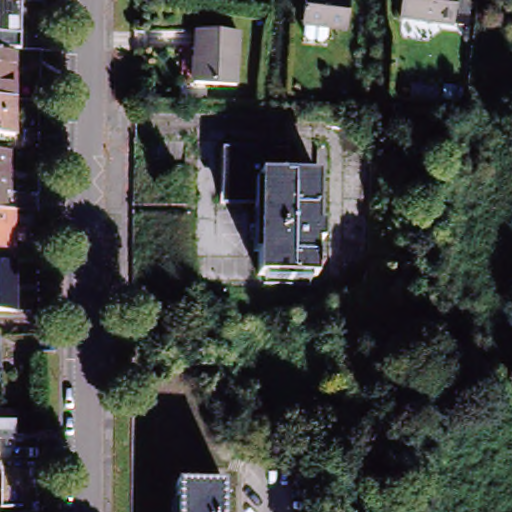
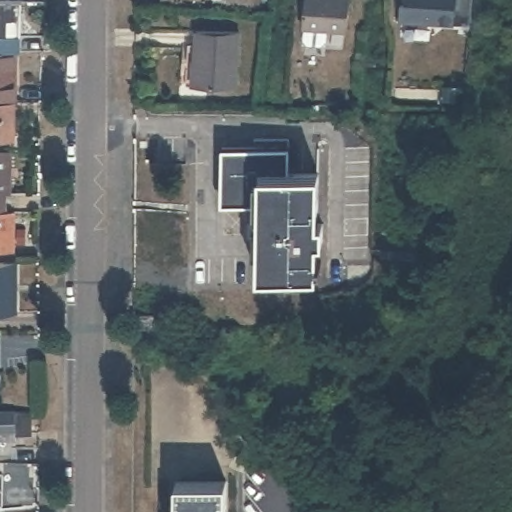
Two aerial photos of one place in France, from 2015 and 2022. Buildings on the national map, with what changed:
unchanged [(25,35),(25,50),(19,50),(18,101),(0,101),(0,30),(0,0),(25,0),(25,35)]
unchanged [(317,41),(304,40),(300,35),(301,24),(298,23),(301,0),(347,0),(344,27),(323,25),(321,37),(317,41)]
unchanged [(395,22),(398,0),(472,0),(469,29),(395,22)]
unchanged [(191,84),(196,29),(240,33),(236,87),(191,84)]
unchanged [(17,136),(6,136),(6,143),(0,143),(0,101),(18,101),(17,136)]
unchanged [(6,211),(0,211),(0,150),(7,150),(14,150),(13,196),(6,196),(6,211)]
unchanged [(294,152),(293,176),(259,174),(259,205),(227,204),(228,150),(294,152)]
unchanged [(259,205),(259,174),(293,176),(320,178),(319,217),(328,217),(327,245),(317,245),(316,277),(256,275),(260,205),(259,205)]
unchanged [(14,212),(14,250),(0,250),(0,211),(6,211),(14,212)]
unchanged [(0,262),(15,262),(15,311),(0,311),(0,262)]
unchanged [(131,336),(133,308),(154,310),(153,333),(131,336)]
unchanged [(1,366),(1,379),(0,379),(0,341),(1,341),(1,366)]
unchanged [(0,406),(16,406),(16,425),(8,425),(8,433),(0,433),(0,406)]
unchanged [(6,453),(6,442),(29,443),(28,453),(6,453)]
unchanged [(225,483),(225,512),(174,512),(174,483),(225,483)]

